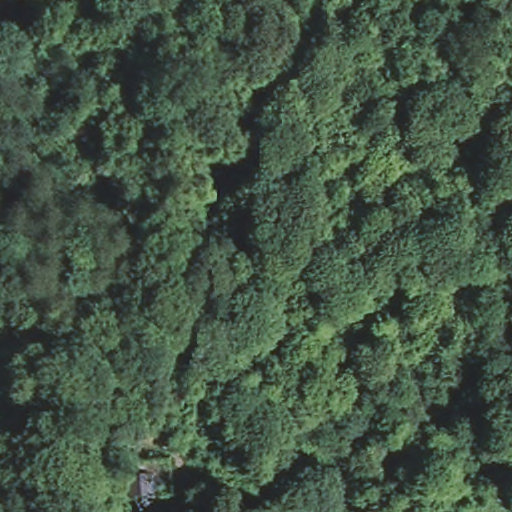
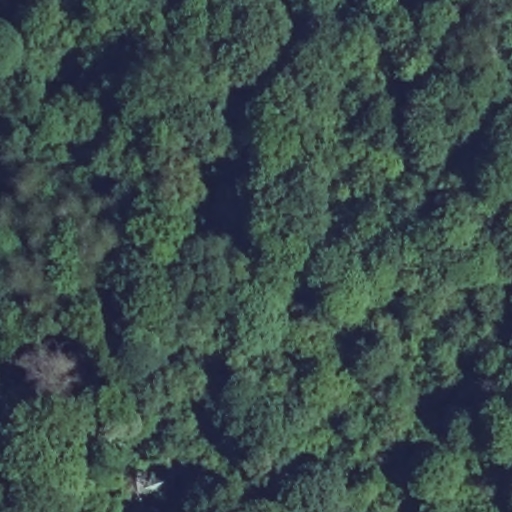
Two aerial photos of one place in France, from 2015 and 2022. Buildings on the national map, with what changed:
unchanged [(161,477),(148,481),(150,509),(120,510),(115,459),(159,452),(161,477)]

